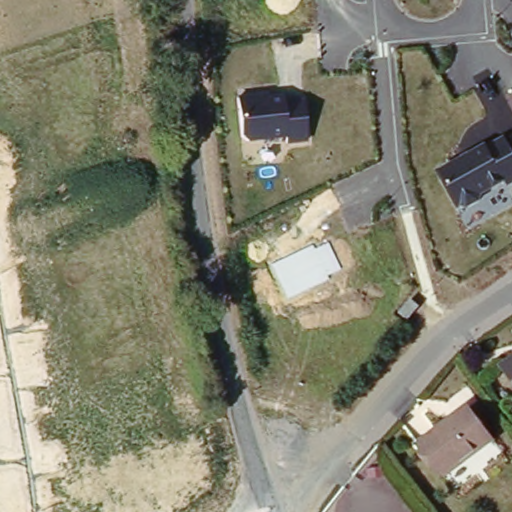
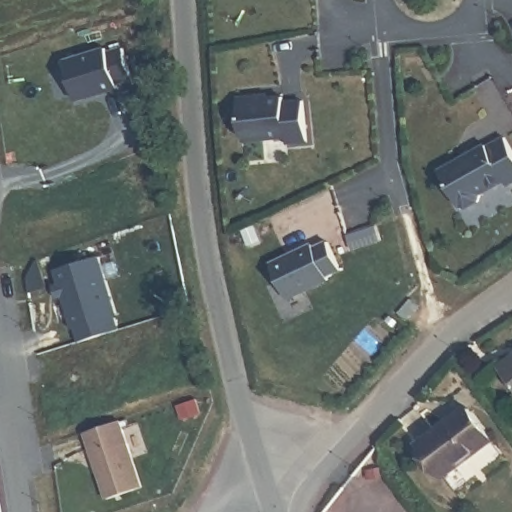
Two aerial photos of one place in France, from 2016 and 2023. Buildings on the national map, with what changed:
new [(106,49),(107,52),(125,46),(134,80),(116,86),(117,91),(76,102),(62,62),(106,49)]
unchanged [(285,145),(285,138),(248,143),(241,135),(239,97),(283,94),(284,104),(304,101),(307,142),(285,145)]
unchanged [(512,183),(467,207),(443,168),(506,134),(512,145),(512,183)]
unchanged [(272,264),(313,245),(314,250),(329,242),(341,268),(327,275),(329,280),(288,298),(272,264)]
new [(94,255),(112,314),(110,315),(114,329),(73,341),(69,327),(66,328),(57,296),(52,298),(48,285),(53,283),(48,270),(94,255)]
unchanged [(512,369),(512,393),(501,377),(512,369)]
unchanged [(423,450),(471,415),(493,445),(445,480),(423,450)]
new [(138,486),(103,498),(80,432),(115,420),(138,486)]

